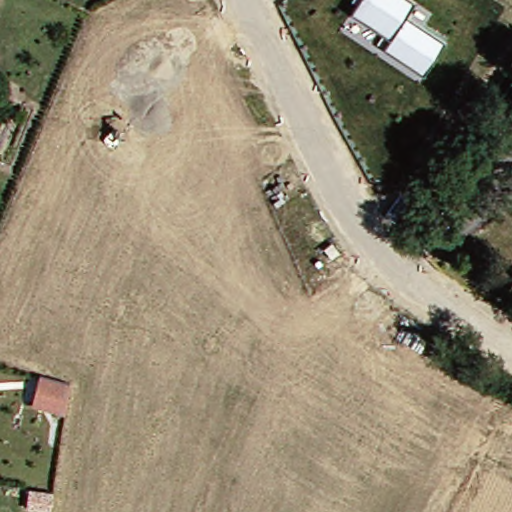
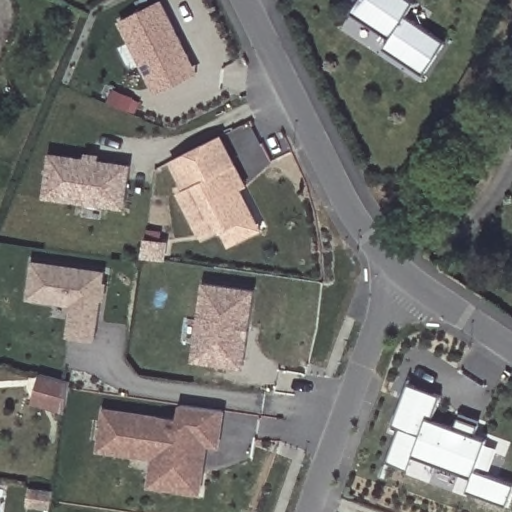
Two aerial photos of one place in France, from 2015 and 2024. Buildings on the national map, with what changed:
unchanged [(414,2),(406,16),(445,42),(426,74),(386,48),(390,40),(352,14),(358,5),(352,0),(411,0),(414,2)]
new [(155,92),(147,78),(145,79),(117,24),(159,3),(187,58),(194,72),(155,92)]
new [(230,248),(222,234),(222,235),(219,230),(200,240),(178,196),(197,186),(182,157),(219,139),(234,169),(245,190),(239,193),(252,220),(258,233),(230,248)]
new [(82,162),(84,155),(97,157),(97,164),(128,168),(123,211),(42,201),(47,158),(82,162)]
new [(97,340),(69,336),(74,304),(29,298),(34,262),(106,272),(97,340)]
new [(195,362),(205,285),(255,291),(245,367),(195,362)]
unchanged [(40,373),(69,382),(67,402),(66,406),(65,411),(32,402),(35,393),(40,373)]
new [(508,506),(468,491),(473,477),(415,456),(409,470),(388,462),(401,427),(395,425),(409,383),(442,395),(435,420),(457,428),(462,412),(482,419),(477,435),(488,440),(478,469),(512,483),(512,496),(508,506)]
new [(222,450),(210,449),(203,496),(149,489),(152,457),(100,450),(104,408),(179,418),(181,405),(227,410),(222,450)]

